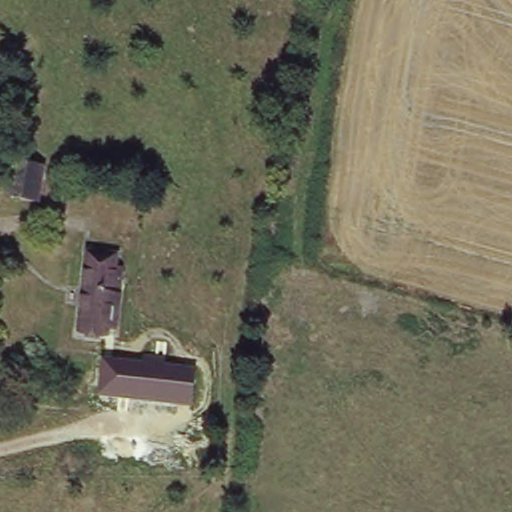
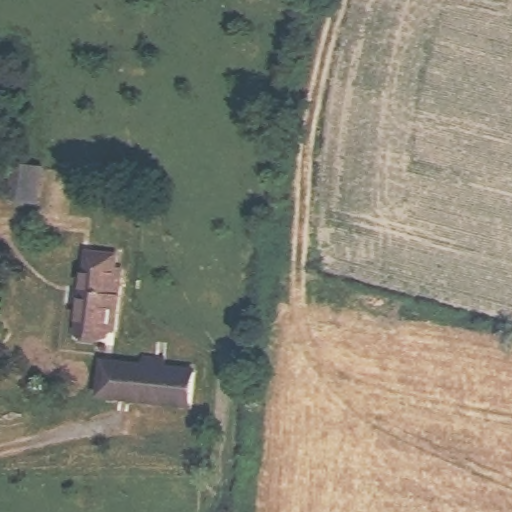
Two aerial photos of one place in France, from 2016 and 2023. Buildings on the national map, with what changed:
unchanged [(34,201),(7,200),(11,165),(36,167),(34,201)]
unchanged [(113,328),(105,328),(105,332),(77,330),(83,264),(85,247),(112,251),(110,266),(120,267),(113,328)]
unchanged [(101,372),(136,374),(138,364),(160,365),(160,376),(192,377),(189,406),(100,403),(101,372)]

